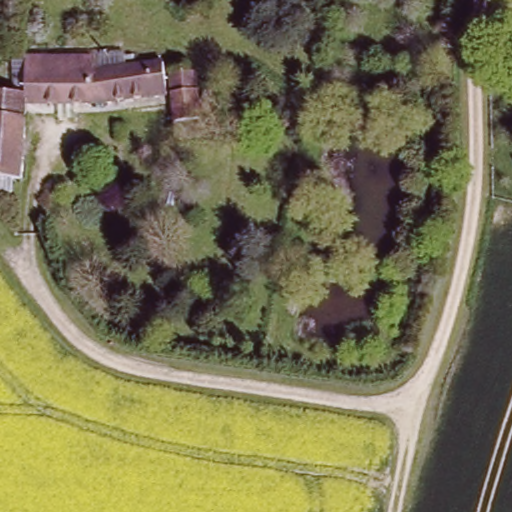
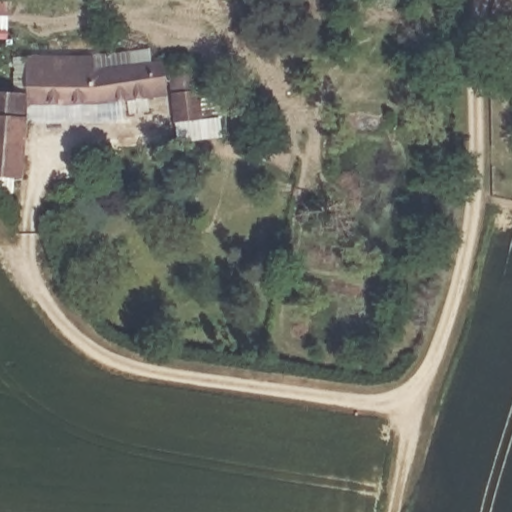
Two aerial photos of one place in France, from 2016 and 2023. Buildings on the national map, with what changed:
unchanged [(0,0),(6,0),(6,6),(6,15),(0,15),(0,0)]
unchanged [(168,104),(25,108),(25,100),(24,85),(23,62),(42,62),(52,62),(53,66),(98,65),(98,71),(156,71),(167,71),(168,104)]
unchanged [(175,128),(174,104),(173,82),(200,81),(202,103),(203,127),(175,128)]
unchanged [(0,100),(25,100),(25,108),(25,128),(0,129),(0,100)]
unchanged [(0,129),(25,128),(27,181),(0,181),(0,129)]

